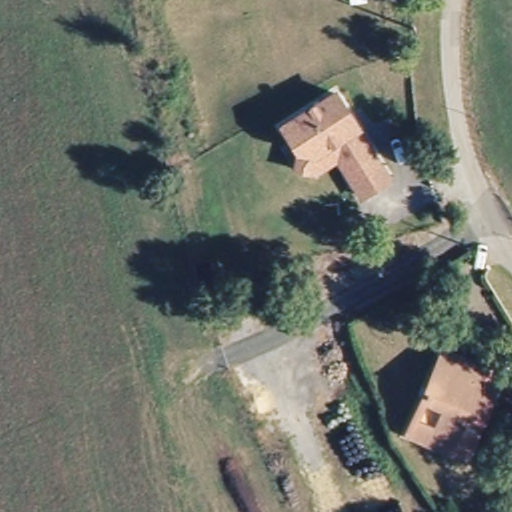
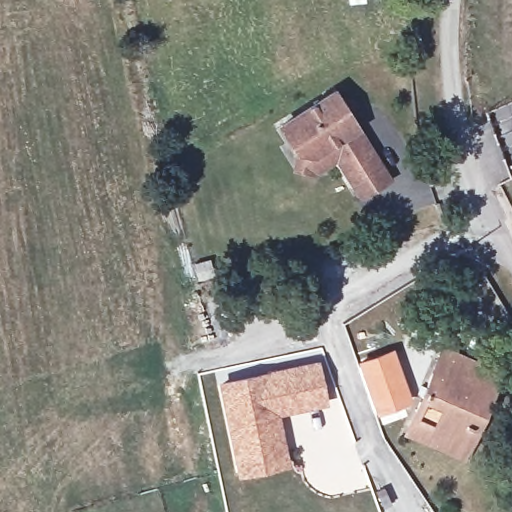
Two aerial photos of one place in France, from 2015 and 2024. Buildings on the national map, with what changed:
unchanged [(363,197),(351,173),(342,160),(333,145),(316,154),(300,146),(287,125),(339,93),(377,156),(392,181),(363,197)]
unchanged [(316,154),(333,145),(342,160),(321,174),(292,170),(284,156),(300,146),(316,154)]
unchanged [(429,344),(462,355),(460,366),(478,372),(483,356),(504,363),(475,450),(401,420),(429,344)]
new [(410,395),(408,401),(376,415),(357,360),(393,347),(410,395)]
new [(327,404),(281,413),(288,466),(237,475),(217,380),(319,358),(327,404)]
unchanged [(475,450),(472,461),(397,435),(401,420),(475,450)]

